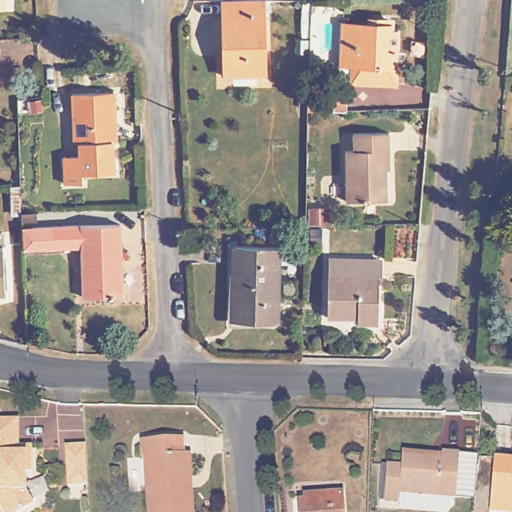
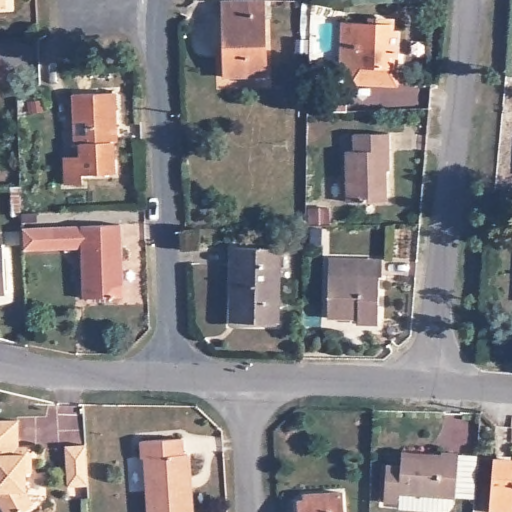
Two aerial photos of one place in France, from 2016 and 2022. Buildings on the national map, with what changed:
unchanged [(0,10),(0,0),(1,0),(1,10),(0,10)]
unchanged [(227,73),(224,0),(268,0),(270,71),(227,73)]
unchanged [(352,56),(340,56),(340,14),(367,15),(370,11),(388,11),(391,14),(391,21),(396,21),(396,74),(352,73),(352,56)]
unchanged [(339,90),(339,106),(311,106),(312,91),(339,90)]
unchanged [(117,126),(117,141),(113,141),(115,172),(83,174),(84,184),(67,185),(65,155),(80,155),(80,143),(72,143),(70,94),(115,92),(117,126)]
unchanged [(351,146),(351,130),(386,129),(387,165),(383,165),(383,196),(343,197),(342,146),(351,146)]
unchanged [(119,221),(122,296),(84,298),(80,245),(19,249),(18,228),(119,221)]
unchanged [(274,246),(271,319),(226,316),(229,244),(274,246)]
unchanged [(8,248),(10,292),(0,293),(0,248),(8,248)]
unchanged [(378,261),(377,277),(374,277),(371,323),(350,322),(350,317),(322,316),(323,258),(378,261)]
unchanged [(288,295),(276,295),(276,278),(290,278),(288,295)]
unchanged [(11,418),(11,444),(25,445),(25,452),(25,470),(17,470),(17,488),(26,504),(8,512),(0,512),(0,418),(11,418)]
unchanged [(184,437),(185,454),(188,453),(190,485),(195,485),(196,512),(155,512),(155,490),(150,491),(148,459),(144,459),(142,439),(184,437)]
unchanged [(65,485),(64,446),(84,445),(85,485),(65,485)]
unchanged [(396,507),(396,501),(381,500),(383,463),(397,464),(398,454),(435,456),(435,449),(455,450),(473,451),(471,495),(452,494),(452,503),(444,510),(396,507)]
unchanged [(498,462),(512,463),(512,512),(494,512),(498,462)]
unchanged [(300,501),(300,493),(338,491),(339,512),(295,512),(295,502),(300,501)]

